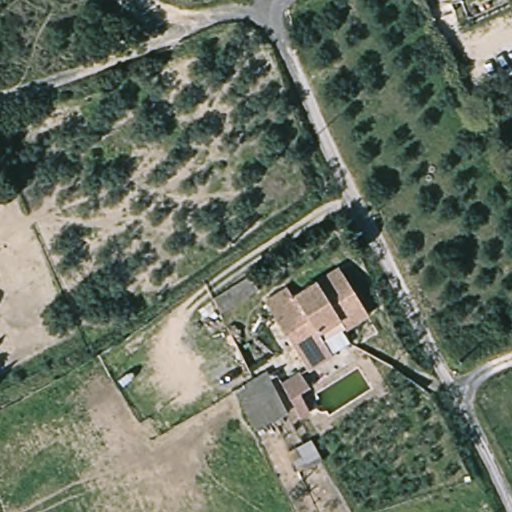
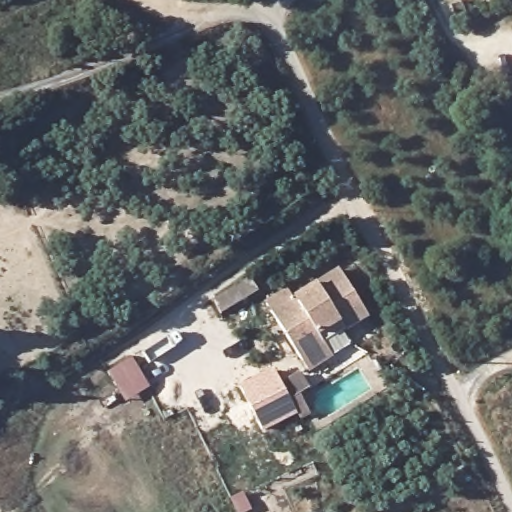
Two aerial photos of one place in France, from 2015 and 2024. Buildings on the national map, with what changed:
unchanged [(365,314),(343,328),(351,340),(307,369),(264,301),(285,287),(293,297),(337,270),(365,314)]
unchanged [(254,289),(219,309),(211,296),(246,274),(254,289)]
new [(131,356),(150,387),(127,402),(108,372),(131,356)]
unchanged [(262,372),(287,411),(260,427),(237,387),(251,378),(262,372)]

